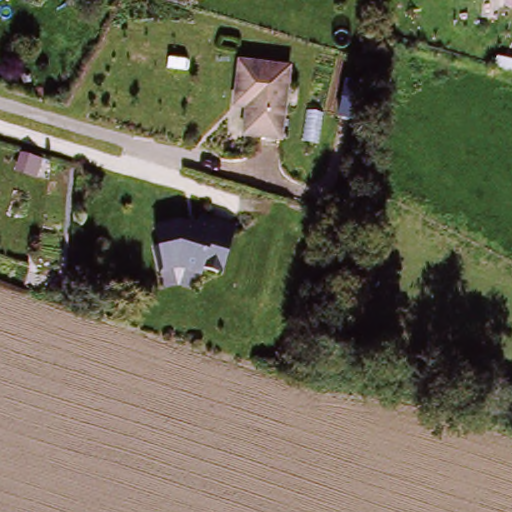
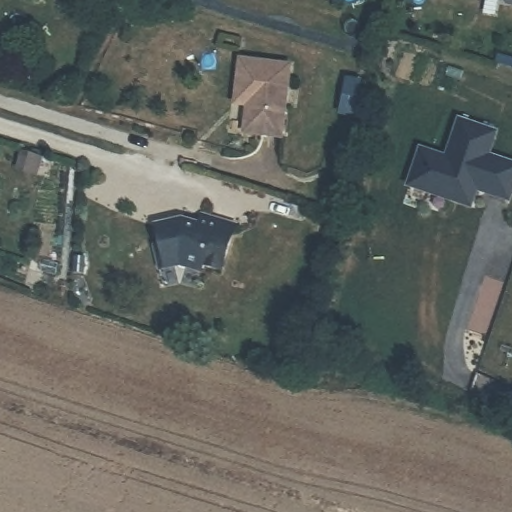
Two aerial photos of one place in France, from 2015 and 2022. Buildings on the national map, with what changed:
unchanged [(170,2),(166,0),(177,0),(175,1),(170,2)]
unchanged [(286,68),(270,138),(234,130),(240,104),(227,101),(230,89),(237,57),(286,68)]
unchanged [(355,98),(348,128),(333,124),(340,94),(355,98)]
new [(421,155),(440,160),(447,163),(458,124),(495,134),(487,159),(512,166),(512,197),(510,202),(485,194),(484,188),(478,186),(472,205),(431,193),(430,197),(410,190),(420,154),(421,155)]
unchanged [(172,219),(172,224),(188,233),(192,220),(225,229),(213,273),(195,268),(193,274),(172,268),(152,270),(147,248),(152,247),(146,227),(172,219)]

